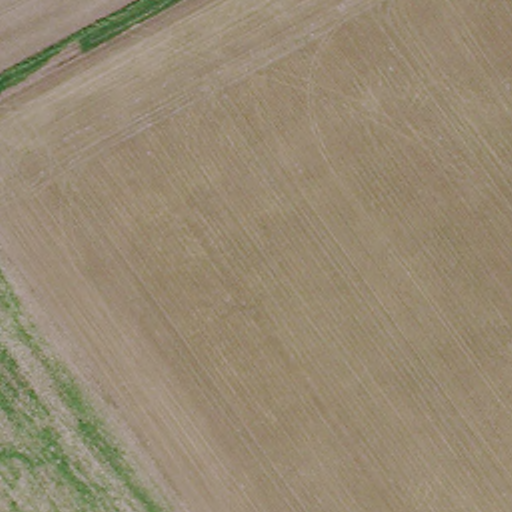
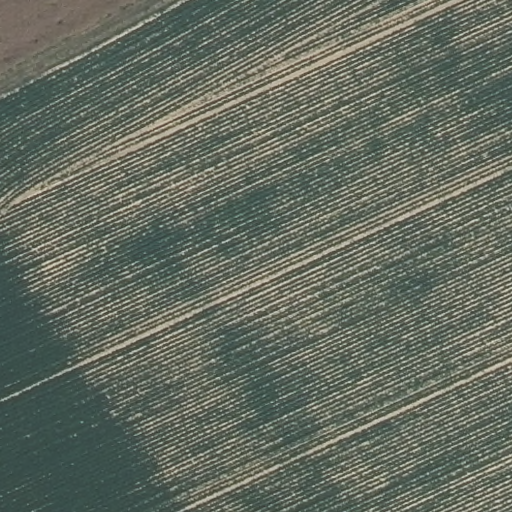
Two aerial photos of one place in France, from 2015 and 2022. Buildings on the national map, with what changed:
[]

